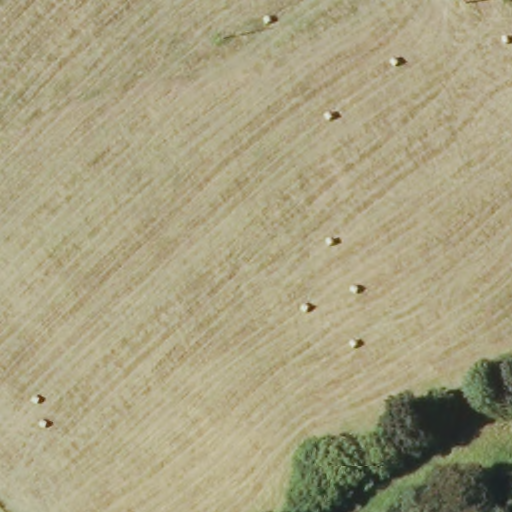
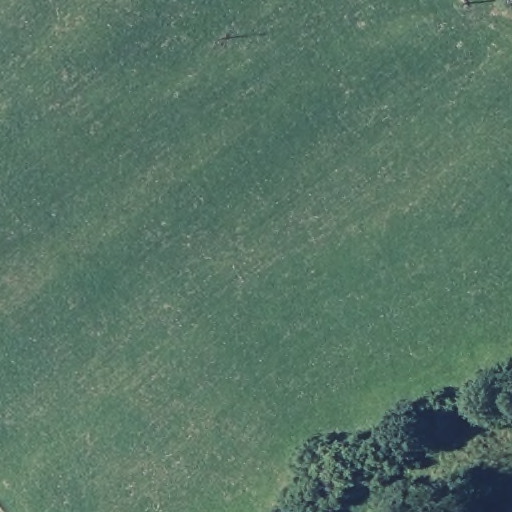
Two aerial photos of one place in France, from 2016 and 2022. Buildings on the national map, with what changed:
unchanged [(509,0),(512,0),(510,1),(509,0)]

